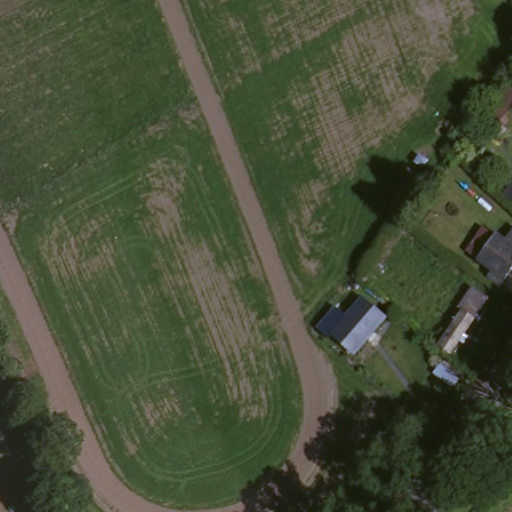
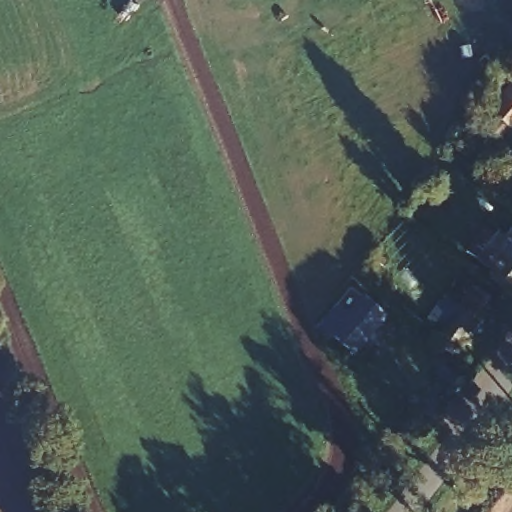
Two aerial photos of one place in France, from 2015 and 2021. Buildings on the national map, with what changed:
unchanged [(510,81),(512,83),(512,125),(501,137),(478,120),(510,81)]
unchanged [(512,185),(512,206),(502,198),(512,185)]
unchanged [(499,243),(504,247),(512,237),(512,276),(504,286),(479,266),(499,243)]
unchanged [(472,294),(483,303),(441,358),(429,348),(472,294)]
unchanged [(379,323),(351,357),(330,339),(359,305),(379,323)]

